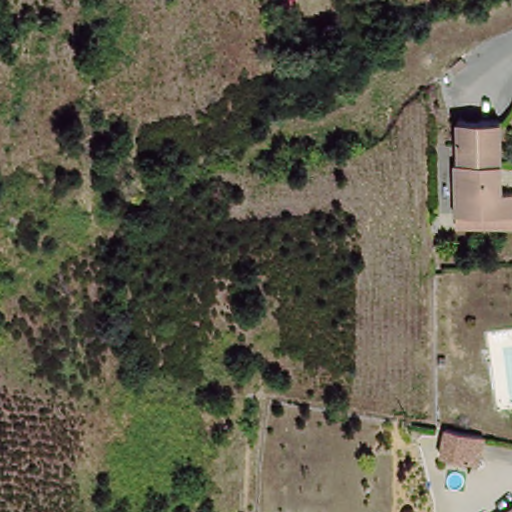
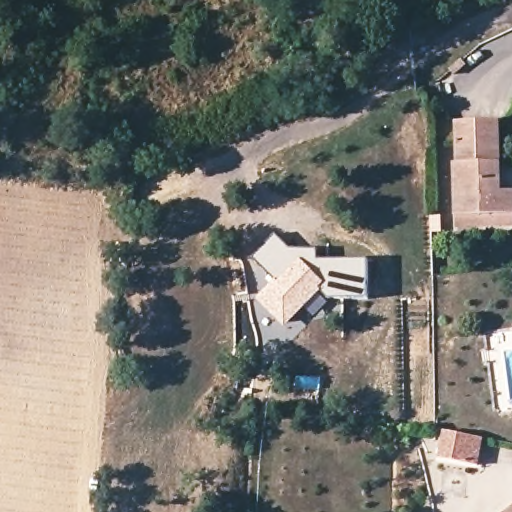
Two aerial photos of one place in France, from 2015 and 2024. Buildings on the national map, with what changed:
unchanged [(512,195),(512,218),(460,219),(456,166),(460,167),(458,126),(500,124),(501,195),(512,195)]
new [(257,299),(276,281),(253,258),(276,234),(290,249),(317,249),(320,260),(369,259),(370,297),(330,298),(322,293),(287,328),(257,299)]
unchanged [(483,466),(447,459),(450,433),(488,439),(483,466)]
unchanged [(512,509),(512,512),(508,512),(512,509)]

